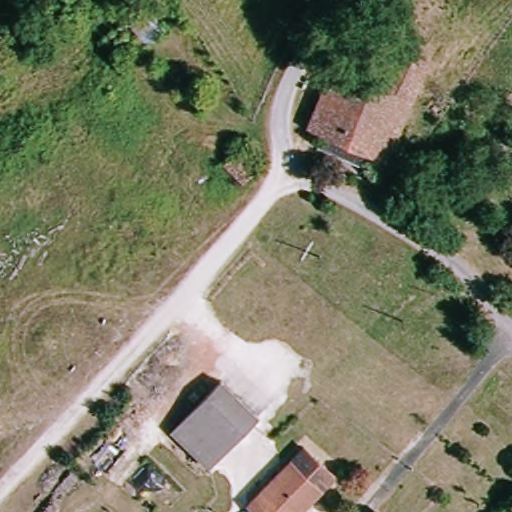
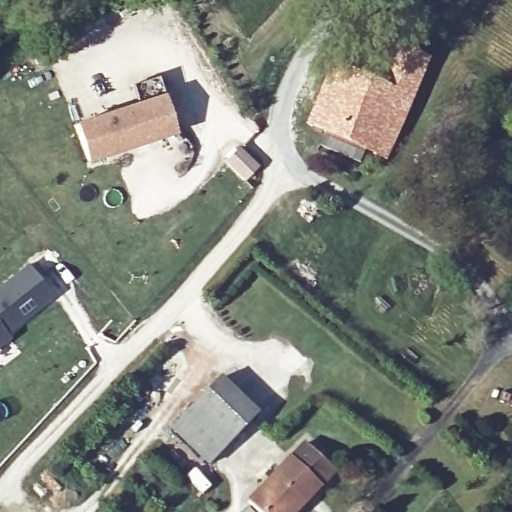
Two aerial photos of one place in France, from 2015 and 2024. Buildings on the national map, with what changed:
unchanged [(383,93),(403,51),(428,65),(414,100),(387,168),(358,152),(371,125),(356,119),(369,87),(383,93)]
unchanged [(320,68),(337,74),(310,132),(293,124),(320,68)]
unchanged [(356,119),(371,125),(358,152),(310,132),(337,74),(369,87),(356,119)]
new [(135,104),(130,86),(156,78),(163,96),(176,135),(87,164),(74,124),(135,104)]
new [(7,334),(9,339),(0,347),(0,287),(25,266),(52,297),(7,334)]
unchanged [(210,465),(172,429),(222,381),(255,414),(210,465)]
unchanged [(297,499),(286,512),(245,512),(241,509),(299,445),(333,478),(307,506),(297,499)]

